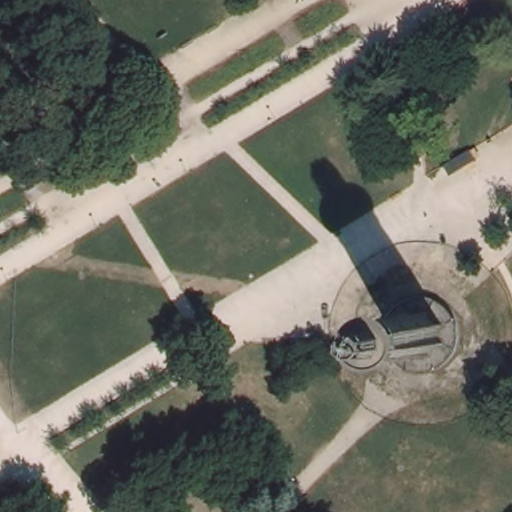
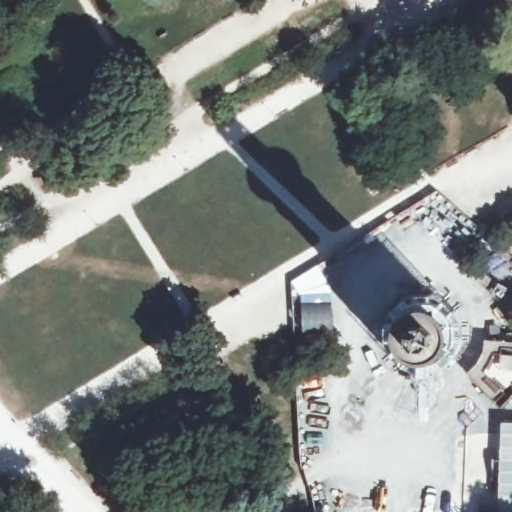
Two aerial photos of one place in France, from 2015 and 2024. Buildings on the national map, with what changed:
unchanged [(421,338),(422,336),(424,335),(425,333),(427,332),(429,330),(425,321),(430,320),(433,329),(436,328),(438,328),(441,328),(444,329),(448,320),(452,321),(448,330),(450,332),(452,334),(455,336),(456,338),(465,334),(467,338),(458,342),(458,345),(458,348),(458,351),(458,353),(467,357),(465,361),(456,357),(455,359),(453,361),(452,363),(450,364),(448,365),(452,374),(448,376),(444,367),(441,368),(438,368),(436,368),(433,367),(430,376),(425,374),(429,365),(427,364),(425,362),(423,360),(421,358),(412,361),(411,357),(420,354),(419,351),(419,348),(419,345),(420,343),(410,339),(412,335),(421,338)]
new [(475,363),(480,355),(483,339),(512,340),(512,383),(505,390),(492,401),(465,373),(475,363)]
new [(500,421),(512,421),(512,512),(496,512),(500,421)]

